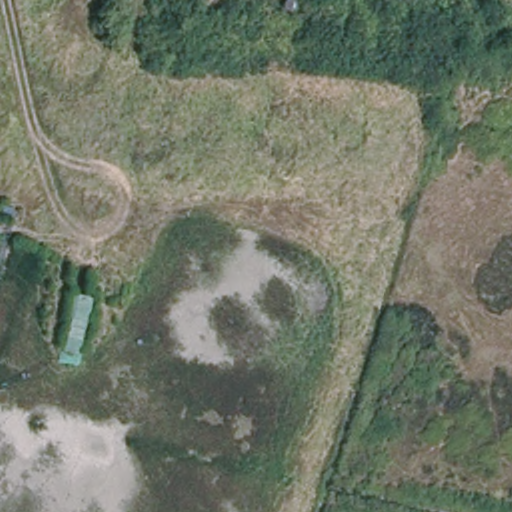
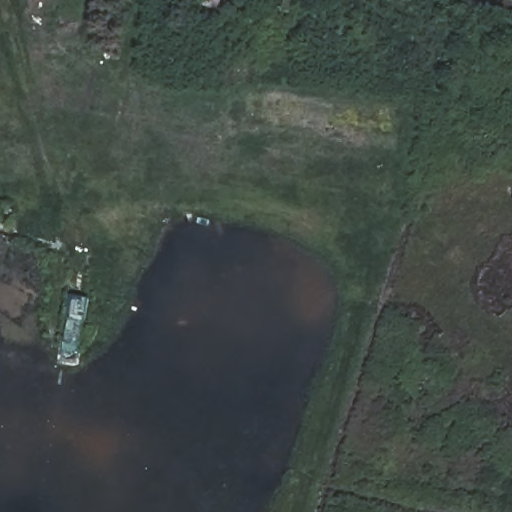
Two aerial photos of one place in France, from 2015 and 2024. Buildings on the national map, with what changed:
unchanged [(80,338),(68,335),(73,297),(88,299),(80,338)]

